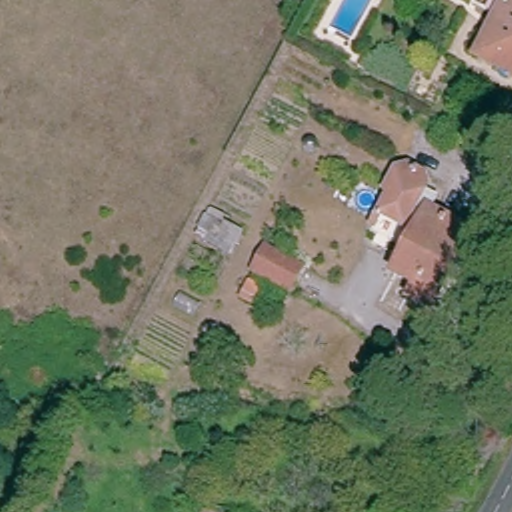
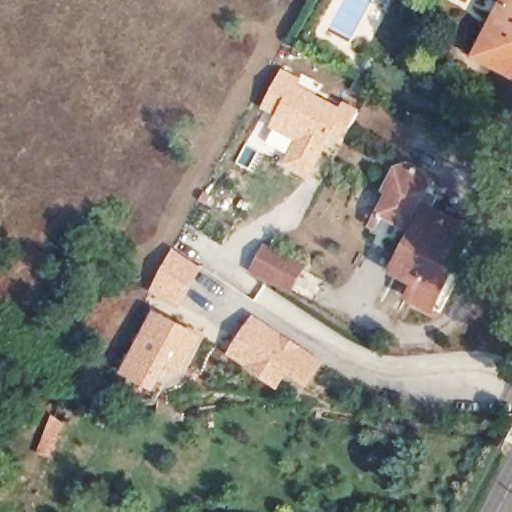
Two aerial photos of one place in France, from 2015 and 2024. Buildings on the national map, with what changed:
unchanged [(506,0),(512,0),(512,75),(477,57),(506,0)]
new [(281,69),(300,78),(297,81),(339,106),(342,101),(359,111),(330,160),(323,156),(309,180),(279,164),(291,142),(266,128),(273,116),(260,109),(281,69)]
unchanged [(378,208),(388,188),(384,186),(397,162),(401,164),(404,159),(417,165),(421,181),(418,188),(428,194),(424,203),(465,225),(462,231),(434,288),(414,279),(391,267),(404,241),(371,222),(378,208)]
unchanged [(473,236),(437,305),(408,290),(414,279),(434,288),(462,231),(473,236)]
unchanged [(305,268),(291,296),(251,274),(266,248),(305,268)]
new [(201,268),(181,310),(151,292),(174,249),(201,268)]
new [(204,336),(183,374),(169,366),(155,393),(120,375),(154,310),(204,336)]
new [(325,363),(307,390),(288,376),(280,390),(228,355),(255,316),(325,363)]

